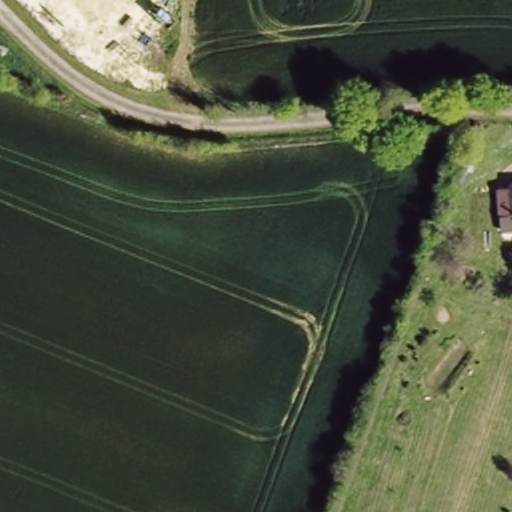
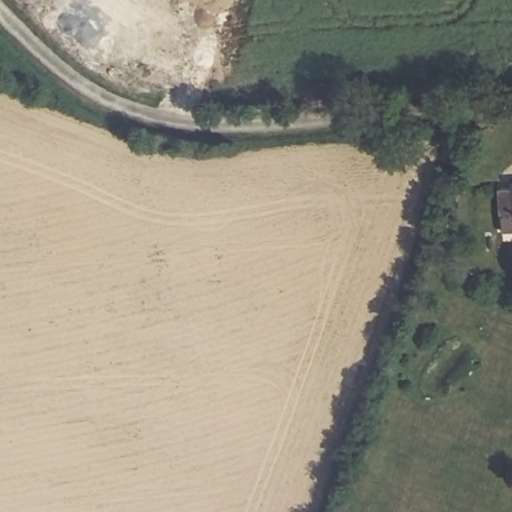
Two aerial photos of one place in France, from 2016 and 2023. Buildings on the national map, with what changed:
unchanged [(512,177),(512,231),(502,232),(498,178),(512,177)]

